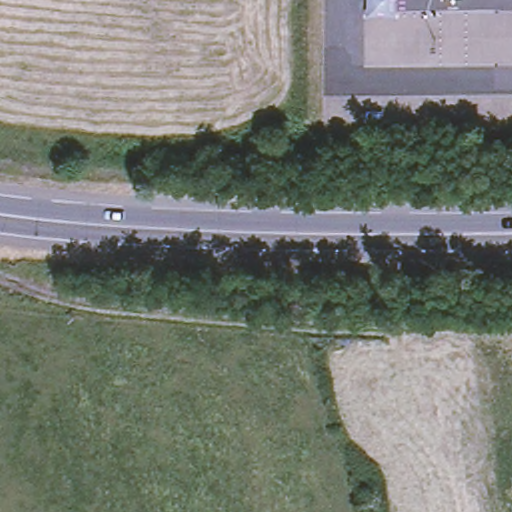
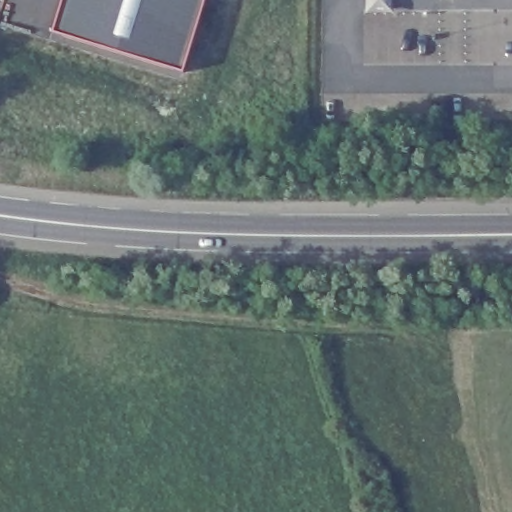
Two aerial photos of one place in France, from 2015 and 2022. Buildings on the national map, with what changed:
new [(183,71),(52,31),(62,0),(204,0),(183,71)]

